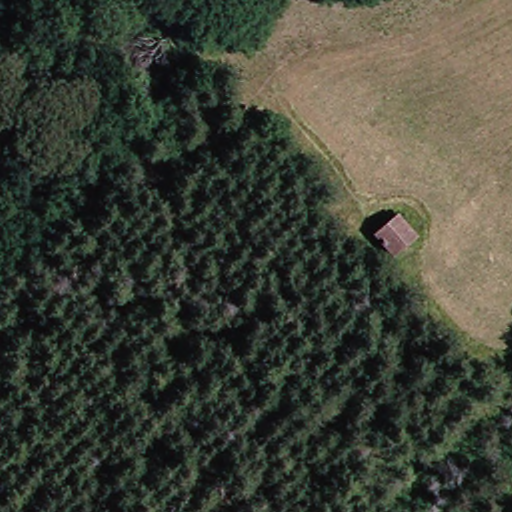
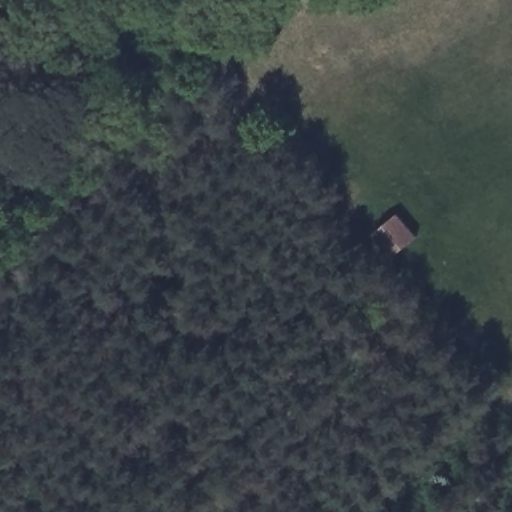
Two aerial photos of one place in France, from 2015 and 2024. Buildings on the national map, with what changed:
unchanged [(393,258),(373,235),(398,213),(418,236),(393,258)]

